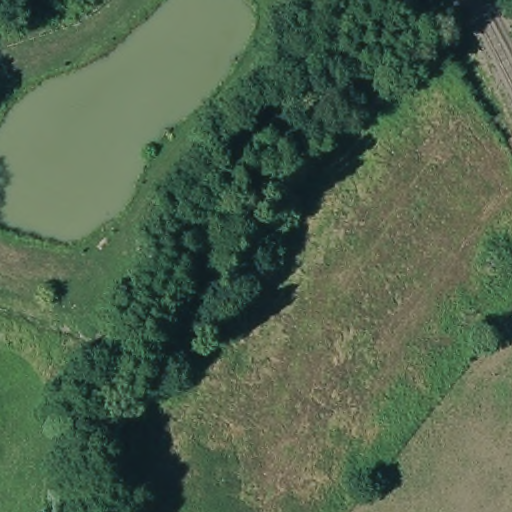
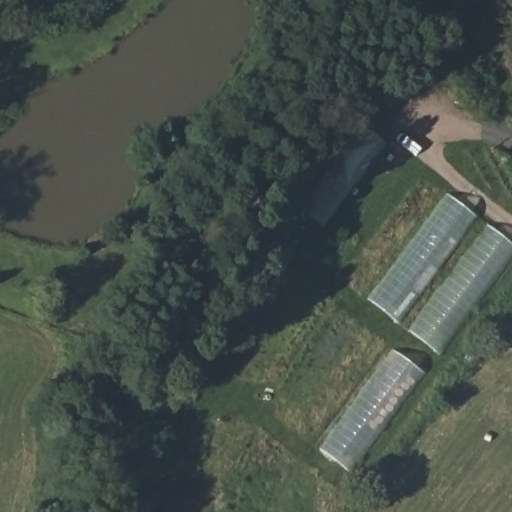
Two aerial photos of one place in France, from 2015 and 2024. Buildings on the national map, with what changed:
new [(322,226),(297,208),(325,171),(350,189),(322,226)]
new [(437,353),(369,301),(447,196),(512,243),(512,251),(437,353)]
new [(391,348),(425,374),(351,479),(315,452),(391,348)]

